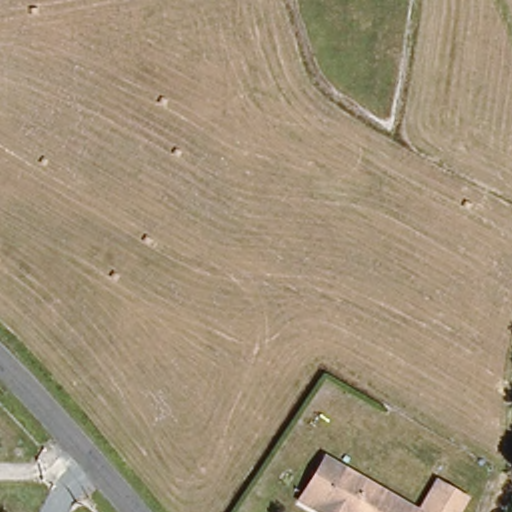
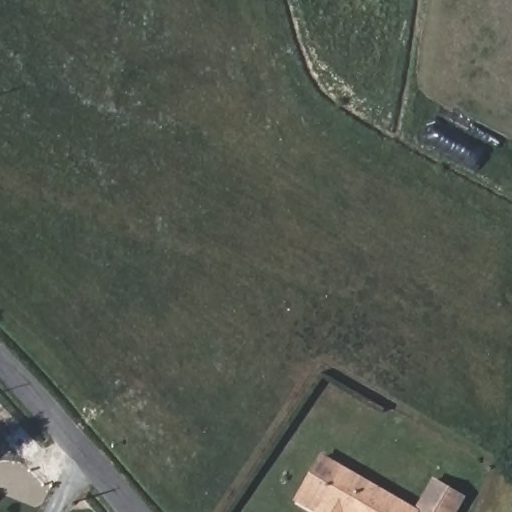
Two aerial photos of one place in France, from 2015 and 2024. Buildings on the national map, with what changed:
unchanged [(315,475),(322,457),(345,470),(420,511),(419,512),(324,512),(322,511),(302,500),(315,475)]
unchanged [(438,480),(467,495),(458,512),(430,512),(422,507),(438,480)]

